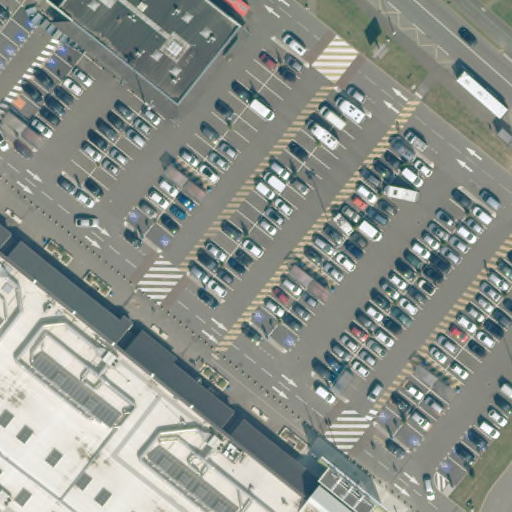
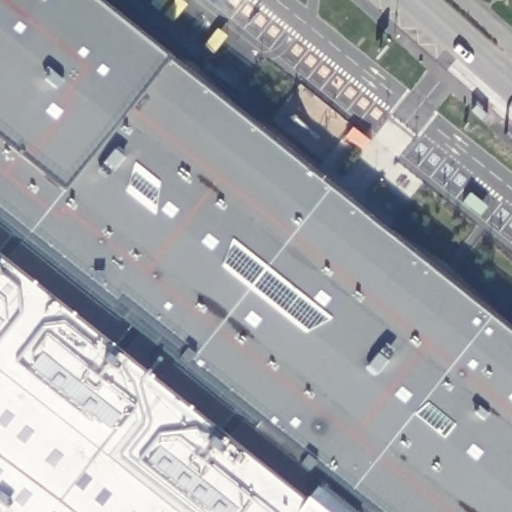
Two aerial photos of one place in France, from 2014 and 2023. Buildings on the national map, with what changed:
new [(512,335),(512,512),(354,512),(357,508),(357,501),(322,474),(316,480),(157,353),(160,348),(134,327),(130,332),(128,331),(122,340),(112,332),(122,319),(114,313),(111,316),(0,227),(0,0),(93,0),(171,61),(512,335)]
demolished [(177,104),(57,10),(66,0),(210,0),(239,23),(177,104)]
demolished [(366,208),(334,249),(254,188),(287,147),(366,208)]
unchanged [(114,313),(122,319),(112,332),(122,340),(128,331),(130,332),(134,327),(160,348),(157,353),(316,480),(322,474),(357,501),(357,508),(354,512),(0,512),(0,227),(111,316),(114,313)]

